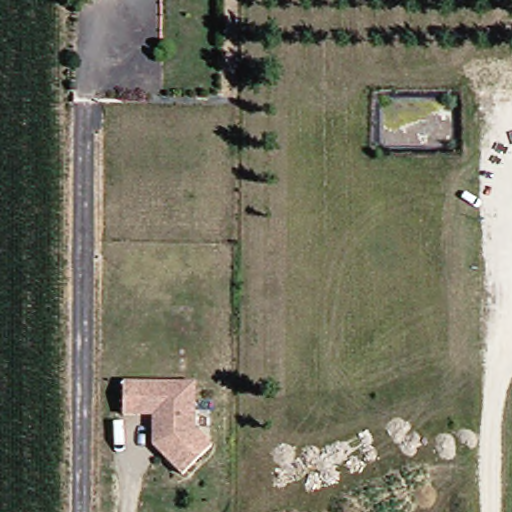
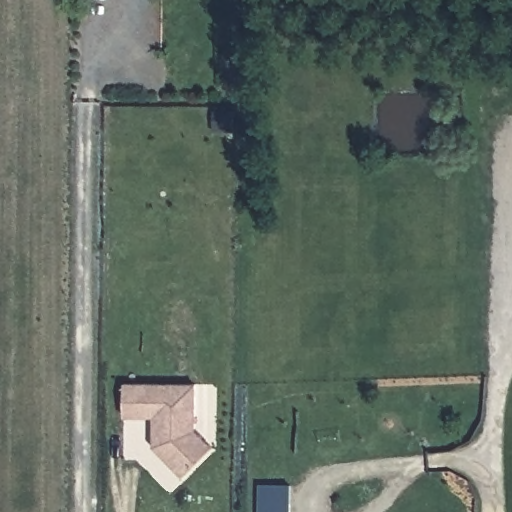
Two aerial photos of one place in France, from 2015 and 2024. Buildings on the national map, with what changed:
unchanged [(160,430),(160,415),(130,415),(130,382),(193,383),(202,383),(201,428),(219,446),(192,472),(189,475),(165,451),(159,445),(160,430)]
new [(292,488),(292,512),(261,512),(261,487),(292,488)]

